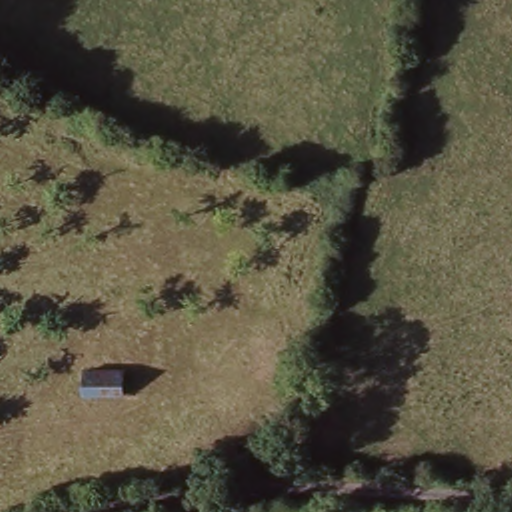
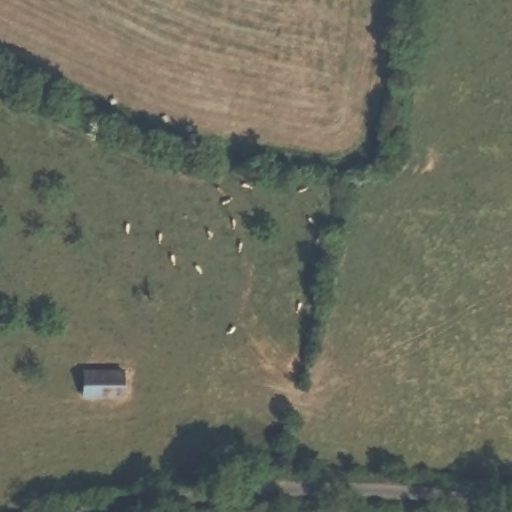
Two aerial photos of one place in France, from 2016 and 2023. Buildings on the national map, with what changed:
unchanged [(80,371),(117,372),(117,376),(116,398),(79,398),(80,374),(80,371)]

